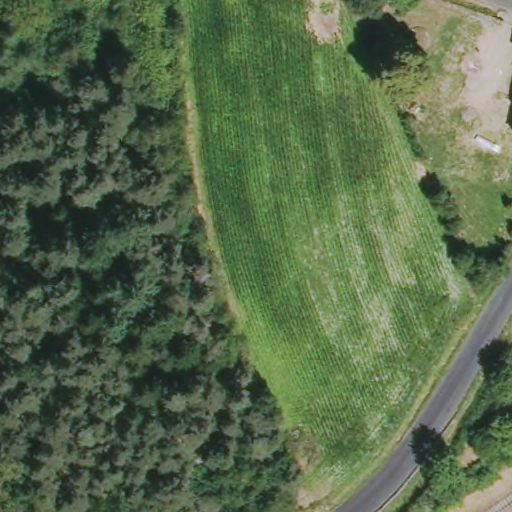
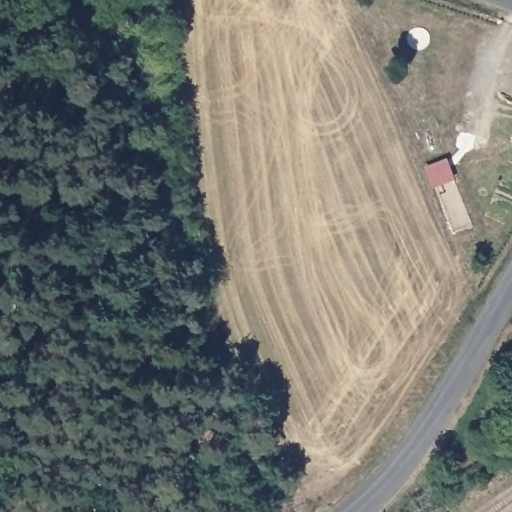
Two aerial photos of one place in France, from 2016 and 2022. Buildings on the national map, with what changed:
unchanged [(476,108),(497,111),(504,74),(512,76),(512,135),(473,128),(476,108)]

